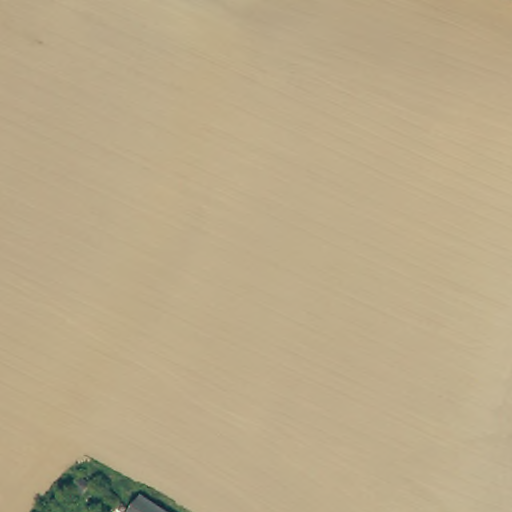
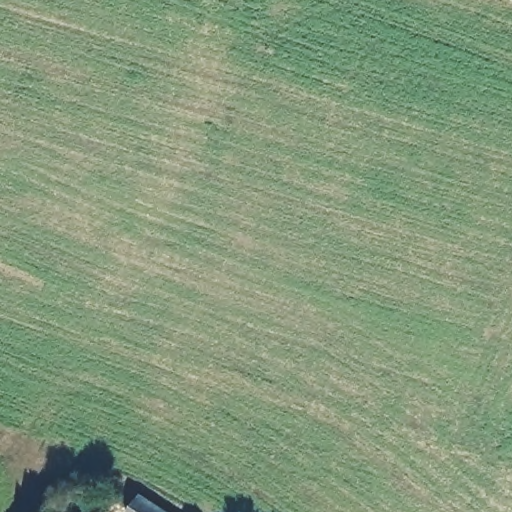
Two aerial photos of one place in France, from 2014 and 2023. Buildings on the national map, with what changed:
unchanged [(184,512),(131,512),(146,488),(184,512)]
unchanged [(87,508),(75,498),(81,493),(94,503),(87,508)]

